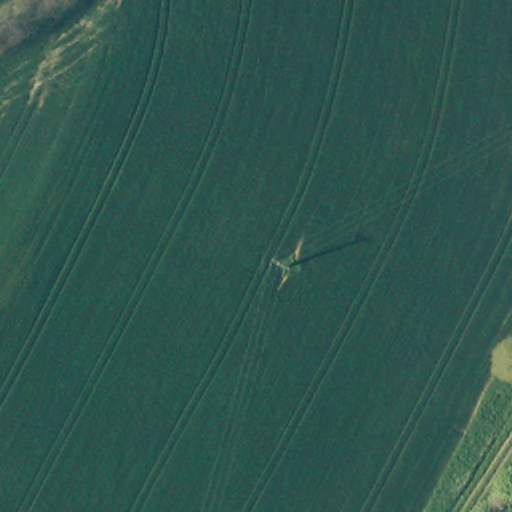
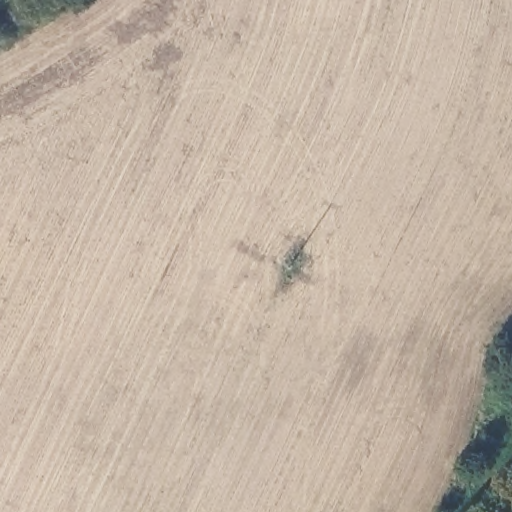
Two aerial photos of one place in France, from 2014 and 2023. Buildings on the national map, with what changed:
[]

